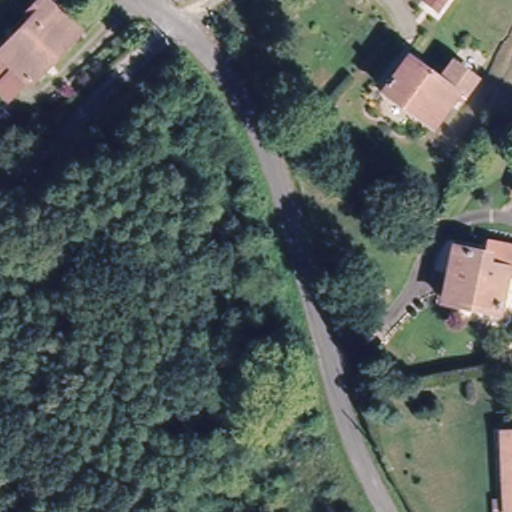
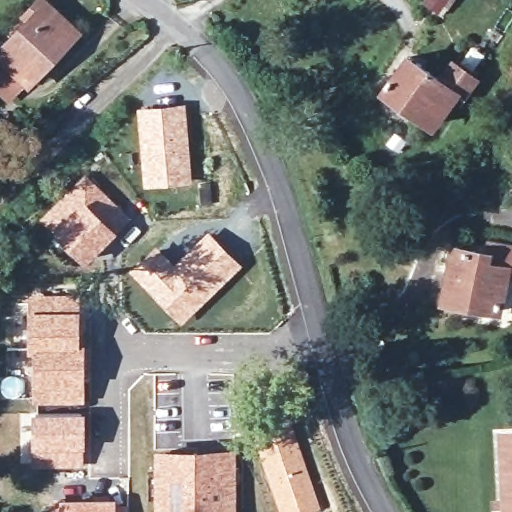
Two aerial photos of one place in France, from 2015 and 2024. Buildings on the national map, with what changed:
unchanged [(23,9),(33,0),(43,0),(75,31),(24,82),(8,98),(0,90),(0,49),(30,17),(23,9)]
unchanged [(403,67),(436,90),(449,71),(471,87),(457,107),(451,102),(431,132),(382,97),(403,67)]
new [(186,103),(193,182),(144,185),(138,107),(186,103)]
new [(87,172),(132,217),(84,263),(39,220),(87,172)]
new [(157,244),(175,262),(209,230),(243,265),(183,323),(130,270),(157,244)]
unchanged [(448,251),(476,257),(478,247),(512,253),(512,271),(511,279),(496,276),(489,313),(438,303),(448,251)]
new [(29,295),(80,294),(81,344),(85,344),(85,402),(33,402),(32,368),(29,343),(29,295)]
new [(86,412),(85,467),(20,463),(20,413),(86,412)]
new [(265,427),(292,417),(322,507),(309,512),(280,512),(259,452),(254,434),(267,430),(265,427)]
unchanged [(507,436),(512,435),(512,486),(507,436)]
new [(237,447),(239,512),(154,512),(154,488),(155,447),(237,447)]
new [(129,496),(129,512),(50,512),(50,499),(129,496)]
unchanged [(501,512),(500,503),(512,502),(512,512),(501,512)]

